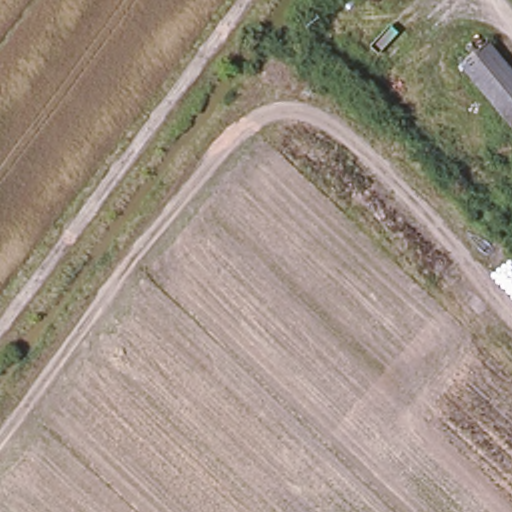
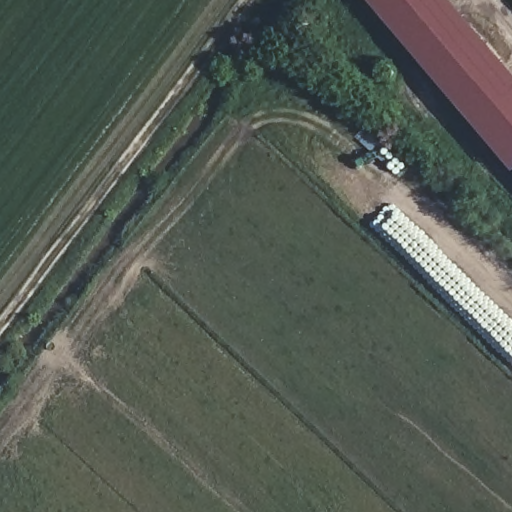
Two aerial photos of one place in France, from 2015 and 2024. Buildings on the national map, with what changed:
new [(512,124),(512,169),(370,0),(454,0),(491,44),(463,63),(512,124)]
unchanged [(495,41),(512,63),(512,124),(463,63),(495,41)]

